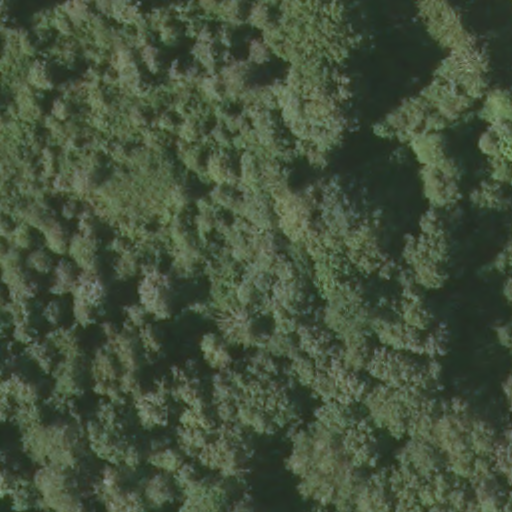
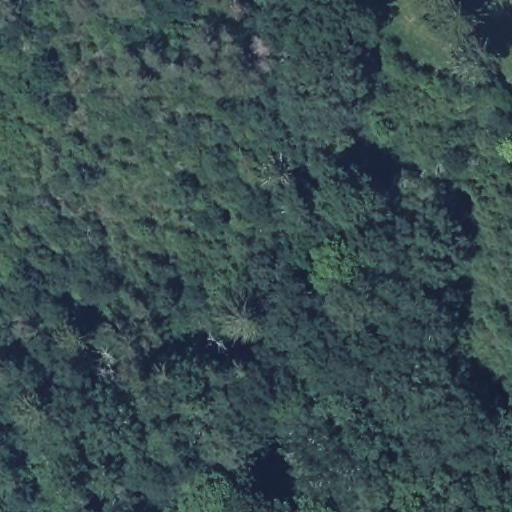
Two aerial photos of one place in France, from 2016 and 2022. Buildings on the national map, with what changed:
unchanged [(512,5),(510,0),(512,0),(512,5)]

